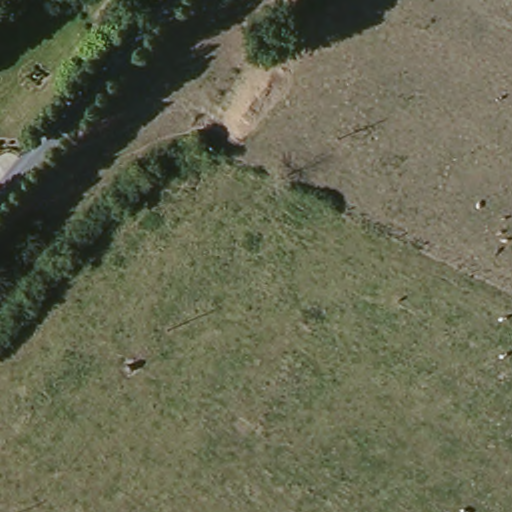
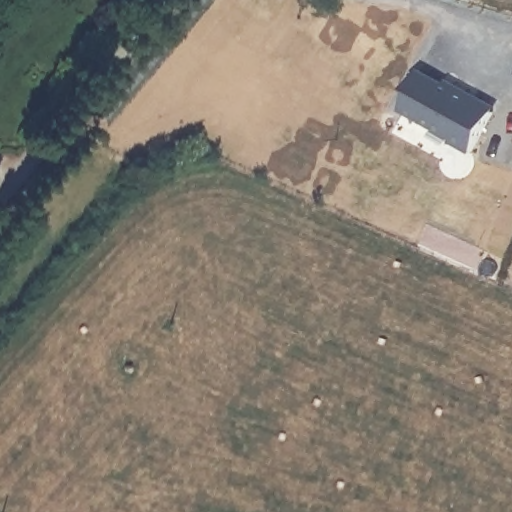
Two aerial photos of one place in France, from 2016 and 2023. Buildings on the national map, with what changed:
new [(449,144),(453,139),(400,111),(413,90),(409,88),(420,69),(443,82),(446,77),(498,107),(471,155),(449,144)]

